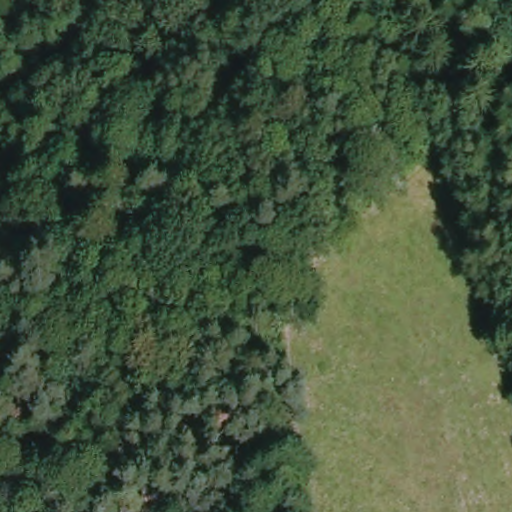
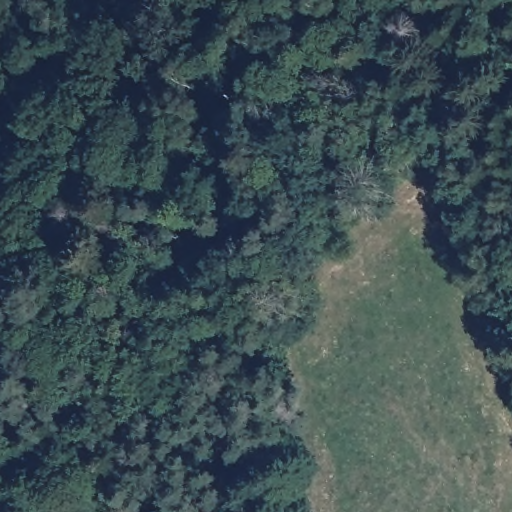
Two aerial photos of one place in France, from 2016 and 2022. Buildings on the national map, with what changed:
unchanged [(96,79),(95,88),(88,88),(88,79),(96,79)]

